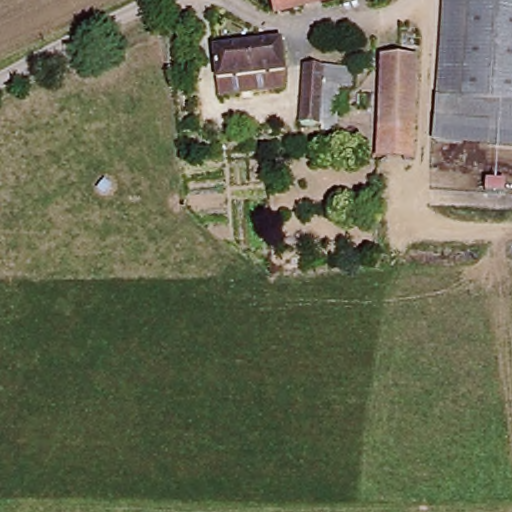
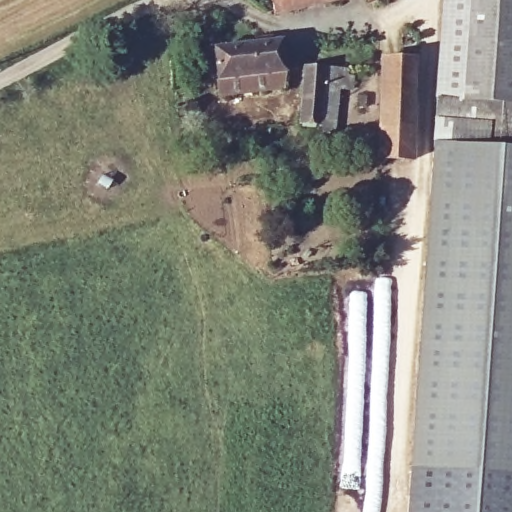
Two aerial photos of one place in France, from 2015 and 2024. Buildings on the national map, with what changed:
unchanged [(271,0),(324,0),(274,12),(271,0)]
unchanged [(512,151),(437,146),(446,0),(471,0),(464,105),(512,108),(512,151)]
unchanged [(512,0),(512,108),(464,105),(471,0),(512,0)]
unchanged [(291,43),(294,75),(294,91),(227,97),(222,51),(291,43)]
unchanged [(376,161),(378,132),(383,61),(416,62),(413,135),(411,164),(376,161)]
unchanged [(299,135),(304,71),(340,74),(336,139),(299,135)]
new [(437,146),(512,151),(512,512),(409,512),(432,146),(437,146)]

